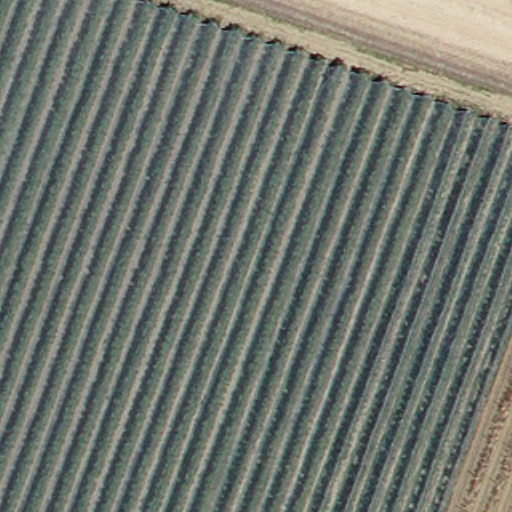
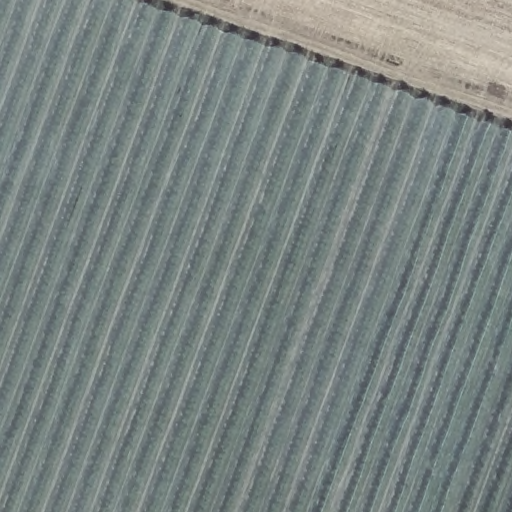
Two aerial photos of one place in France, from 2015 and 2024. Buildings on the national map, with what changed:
[]

